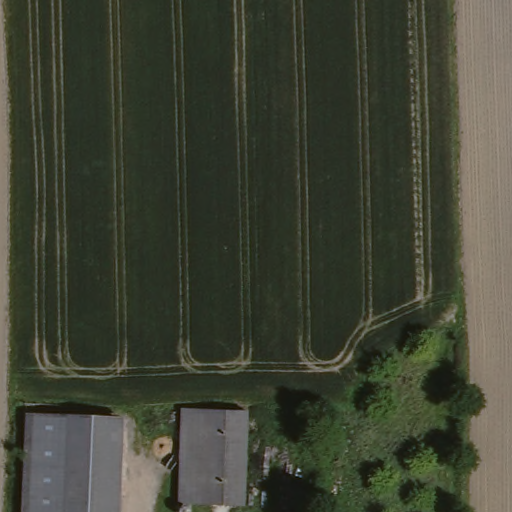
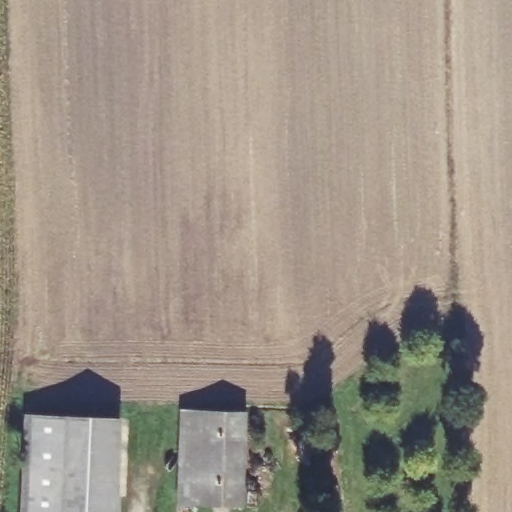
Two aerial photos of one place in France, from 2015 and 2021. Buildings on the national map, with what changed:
unchanged [(79,412),(77,512),(31,512),(34,412),(79,412)]
unchanged [(126,412),(123,512),(77,512),(79,412),(126,412)]
unchanged [(174,507),(179,413),(246,417),(240,507),(174,507)]

